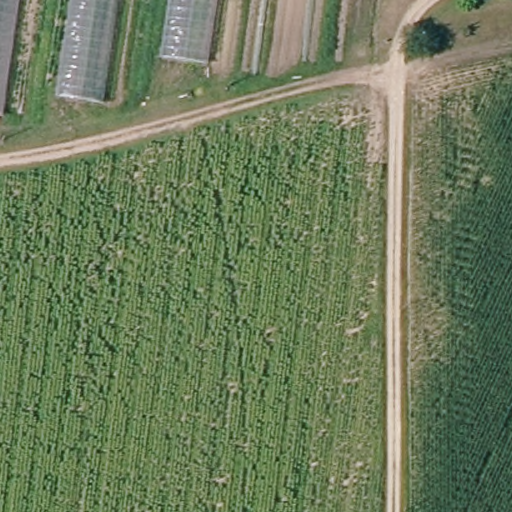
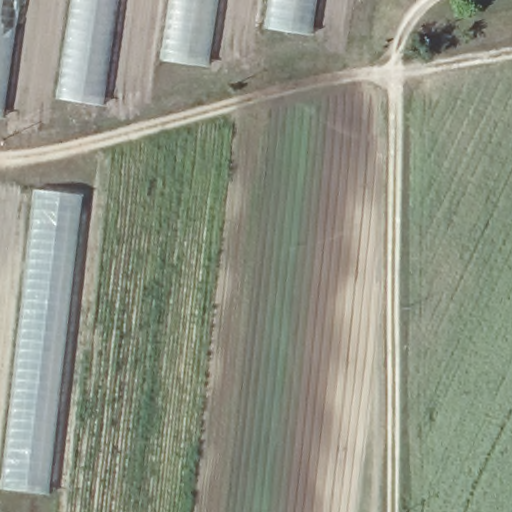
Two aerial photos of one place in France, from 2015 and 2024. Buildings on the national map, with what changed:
unchanged [(0,117),(0,0),(19,0),(2,117),(0,117)]
unchanged [(57,96),(71,0),(118,0),(103,105),(57,96)]
unchanged [(160,57),(169,0),(216,0),(206,65),(160,57)]
new [(316,0),(311,34),(265,29),(270,0),(316,0)]
new [(79,196),(46,496),(0,490),(0,472),(30,190),(79,196)]

